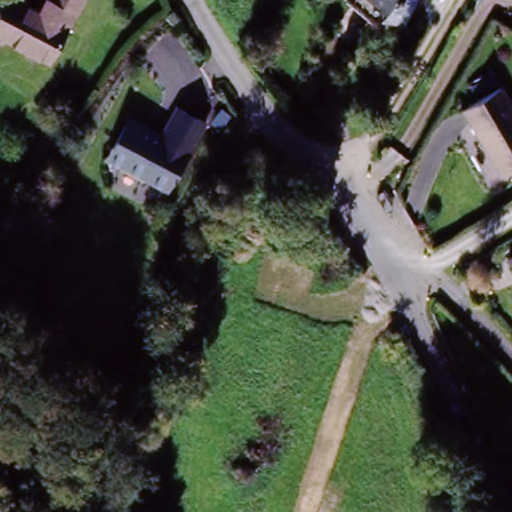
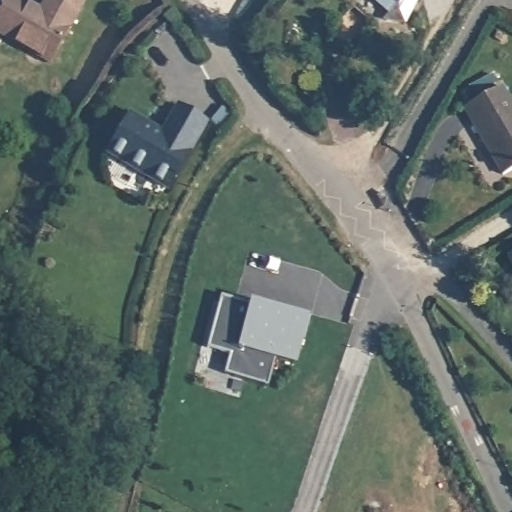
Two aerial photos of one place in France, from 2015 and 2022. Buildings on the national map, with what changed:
unchanged [(6,0),(22,0),(38,9),(43,0),(83,0),(49,60),(8,38),(0,33),(0,10),(6,0)]
unchanged [(367,0),(418,0),(397,24),(375,23),(382,14),(367,0)]
unchanged [(463,105),(500,84),(512,103),(512,168),(502,174),(463,105)]
unchanged [(107,141),(125,110),(150,125),(148,128),(156,131),(173,101),(202,117),(164,185),(114,158),(102,151),(107,141)]
unchanged [(512,251),(512,268),(505,256),(512,251)]
new [(220,300),(252,308),(249,318),(262,321),(265,311),(307,322),(295,366),(275,361),(268,389),(224,378),(230,358),(207,352),(220,300)]

